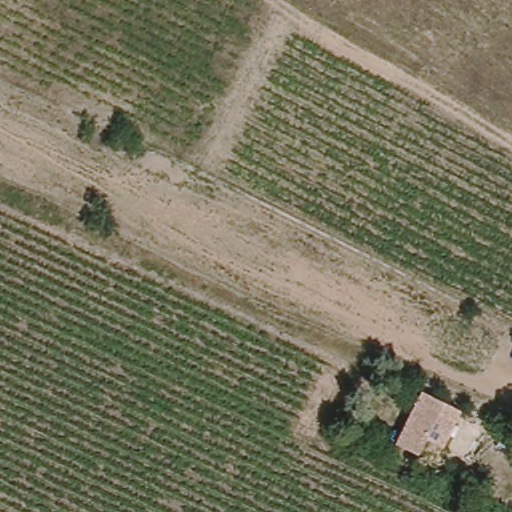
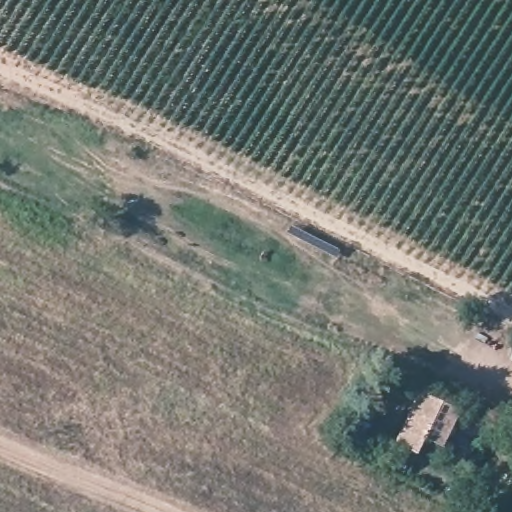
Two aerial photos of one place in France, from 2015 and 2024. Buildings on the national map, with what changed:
unchanged [(437,417),(417,452),(399,443),(419,407),(437,417)]

